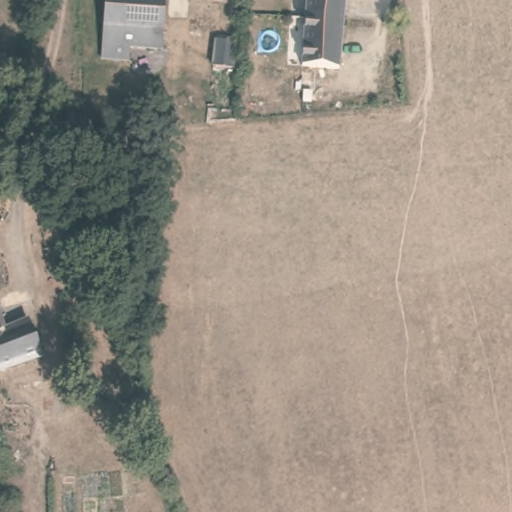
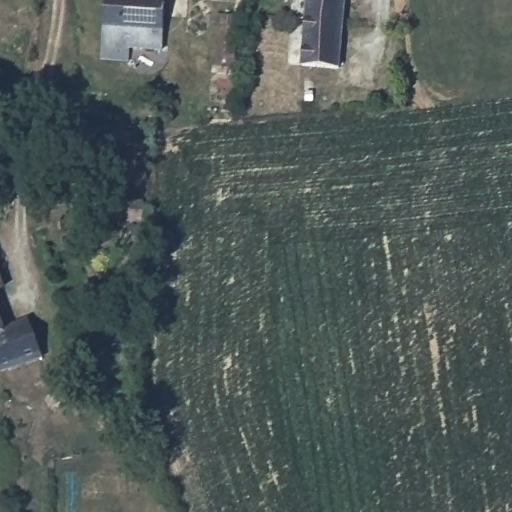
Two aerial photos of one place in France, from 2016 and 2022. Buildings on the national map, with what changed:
unchanged [(106,45),(107,0),(165,0),(163,47),(106,45)]
unchanged [(301,62),(307,0),(341,0),(335,64),(301,62)]
unchanged [(38,356),(0,369),(0,314),(5,327),(26,321),(38,356)]

